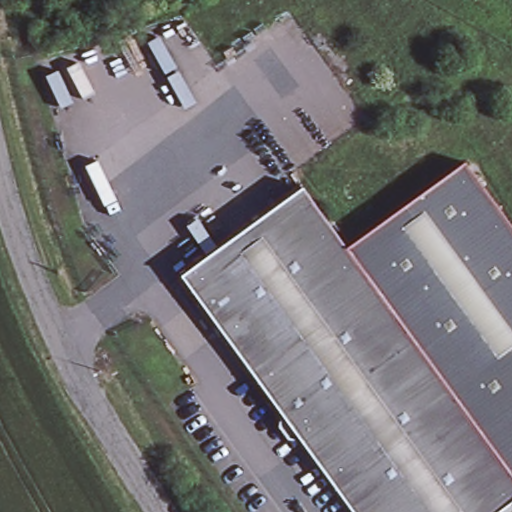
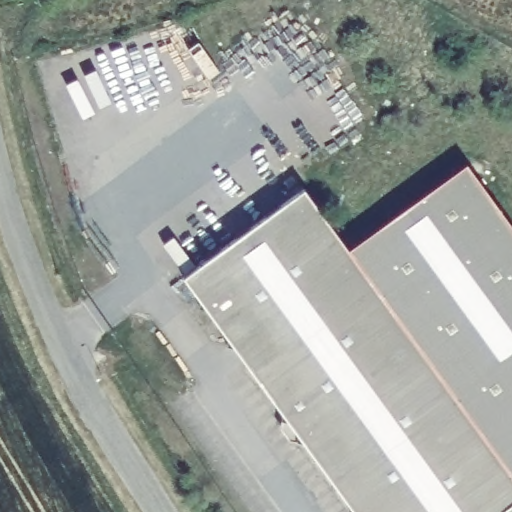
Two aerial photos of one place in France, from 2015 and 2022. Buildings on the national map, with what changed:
unchanged [(512,223),(512,468),(347,246),(466,159),(512,223)]
unchanged [(512,468),(512,501),(497,512),(355,512),(356,509),(302,440),(297,438),(299,432),(288,418),(282,418),(284,412),(236,347),(229,345),(231,338),(207,308),(200,307),(202,298),(185,276),(305,189),(347,246),(512,468)]

